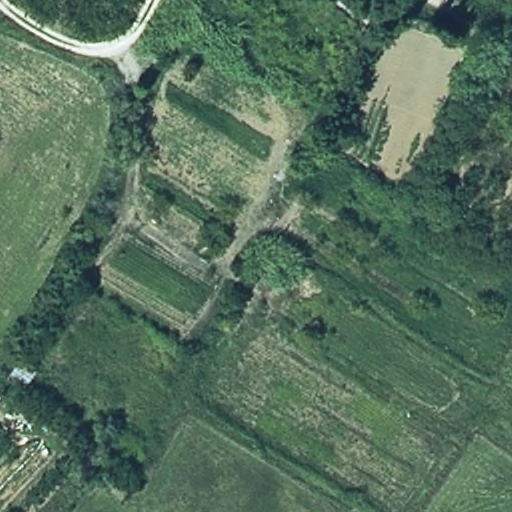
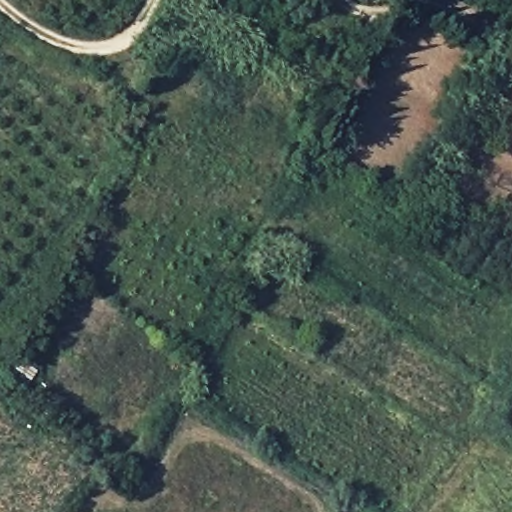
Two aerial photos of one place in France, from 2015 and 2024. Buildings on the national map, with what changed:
unchanged [(41,371),(28,391),(6,376),(20,356),(41,371)]

